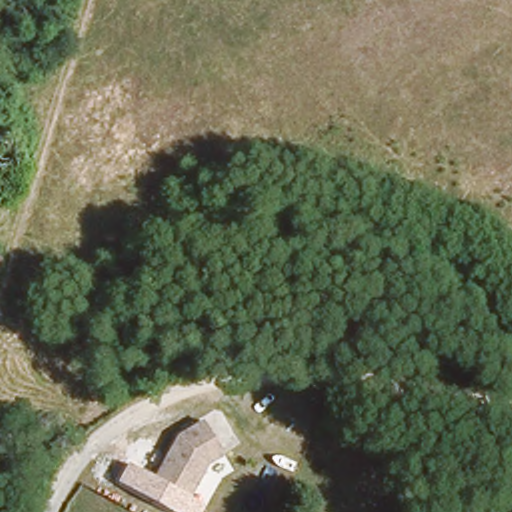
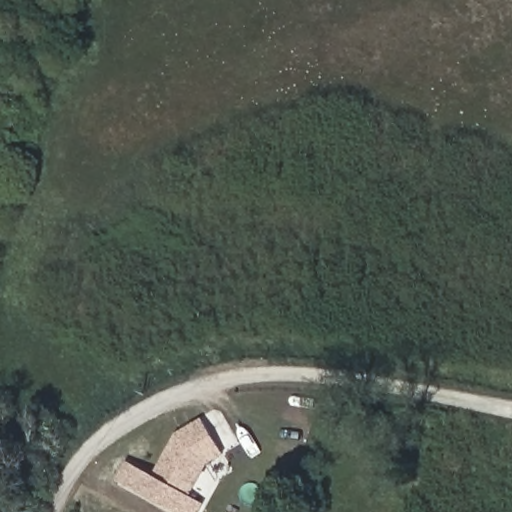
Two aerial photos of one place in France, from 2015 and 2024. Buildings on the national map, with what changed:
unchanged [(175,431),(204,417),(221,448),(204,457),(185,491),(152,472),(175,431)]
unchanged [(21,457),(13,483),(0,480),(0,451),(21,457)]

